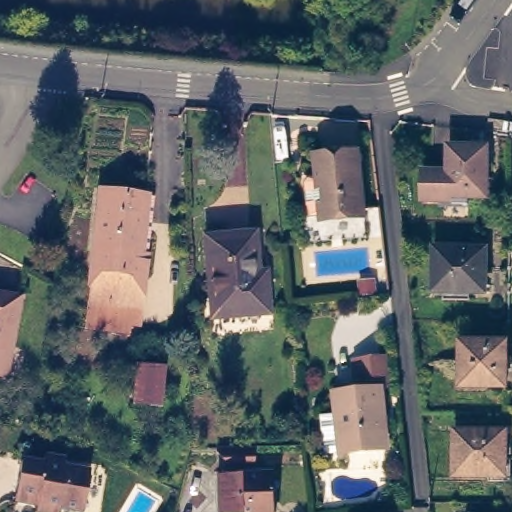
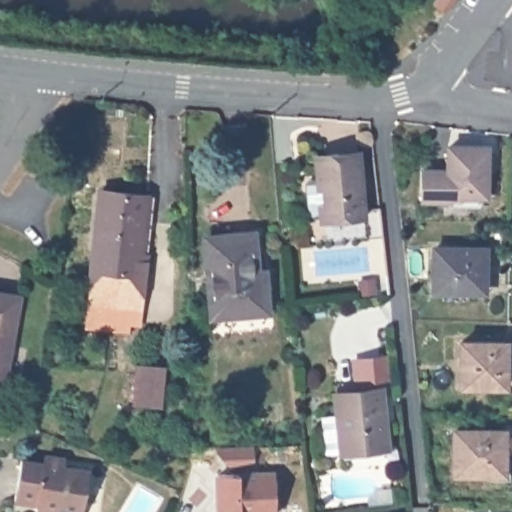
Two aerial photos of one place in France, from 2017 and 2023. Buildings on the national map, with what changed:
unchanged [(327,208),(327,203),(312,204),(307,171),(311,167),(320,166),(318,144),(362,140),(367,204),(327,208)]
unchanged [(495,154),(494,200),(494,201),(494,202),(493,202),(493,203),(492,203),(491,203),(457,203),(457,209),(430,208),(430,177),(457,178),(457,154),(495,154)]
unchanged [(142,204),(149,205),(140,298),(128,298),(125,320),(86,316),(97,195),(88,194),(89,180),(99,182),(143,186),(142,204)]
unchanged [(260,237),(265,285),(272,284),(275,313),(222,319),(214,241),(260,237)]
unchanged [(492,246),(492,288),(442,287),(444,245),(492,246)]
unchanged [(20,289),(8,369),(0,368),(0,286),(20,289)]
unchanged [(512,387),(469,386),(470,343),(512,344),(512,387)]
unchanged [(353,363),(360,363),(385,360),(387,390),(381,390),(385,417),(380,417),(384,450),(342,454),(336,395),(356,393),(353,363)]
unchanged [(166,367),(162,406),(134,404),(137,365),(166,367)]
unchanged [(510,432),(509,475),(459,475),(459,432),(510,432)]
unchanged [(57,506),(37,502),(38,495),(15,491),(22,452),(44,455),(45,447),(65,450),(63,458),(90,462),(83,502),(82,509),(57,506)]
unchanged [(245,449),(245,466),(220,466),(209,453),(209,450),(245,449)]
unchanged [(264,474),(265,512),(210,512),(209,476),(264,474)]
unchanged [(399,512),(372,512),(399,508),(399,512)]

